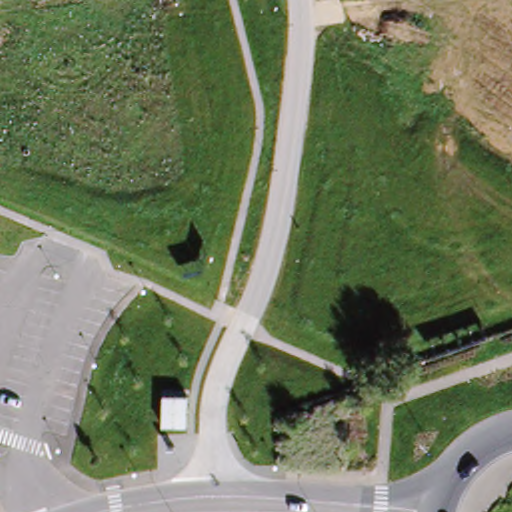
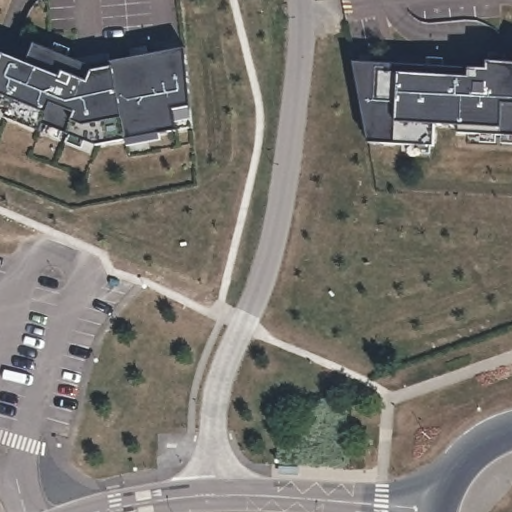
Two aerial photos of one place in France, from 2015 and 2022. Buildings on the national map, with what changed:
new [(95,137),(44,120),(42,125),(6,114),(8,109),(0,106),(0,52),(25,63),(37,35),(90,56),(185,48),(191,108),(192,128),(177,129),(95,137)]
new [(364,122),(353,63),(487,68),(487,60),(512,61),(512,135),(457,133),(458,125),(434,124),(433,146),(380,143),(368,144),(364,122)]

